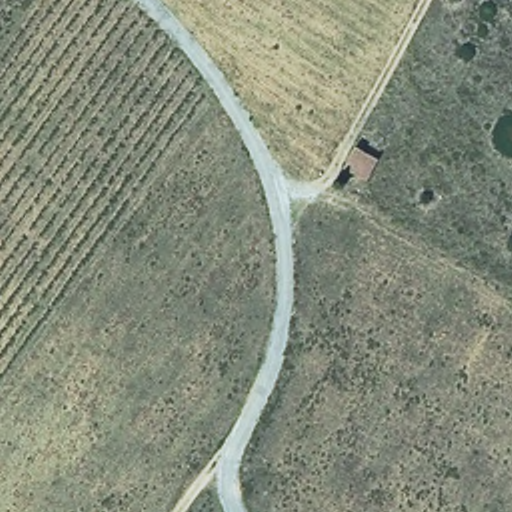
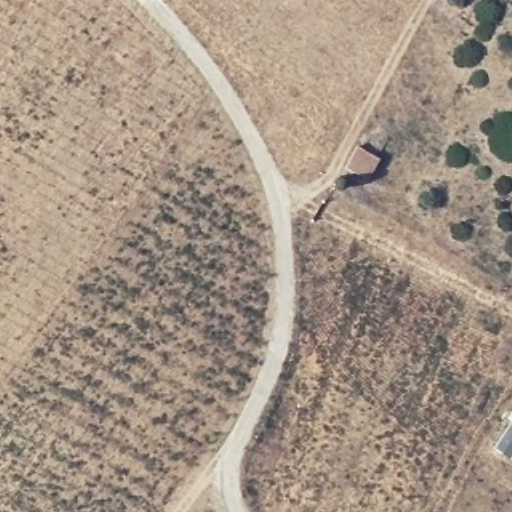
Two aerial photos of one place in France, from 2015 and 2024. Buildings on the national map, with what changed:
unchanged [(377,166),(367,187),(342,174),(352,154),(377,166)]

